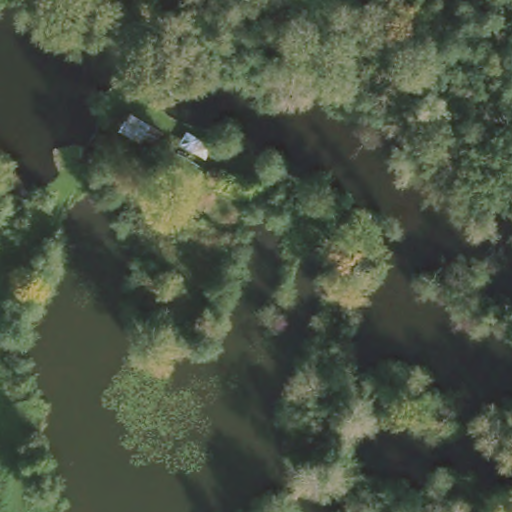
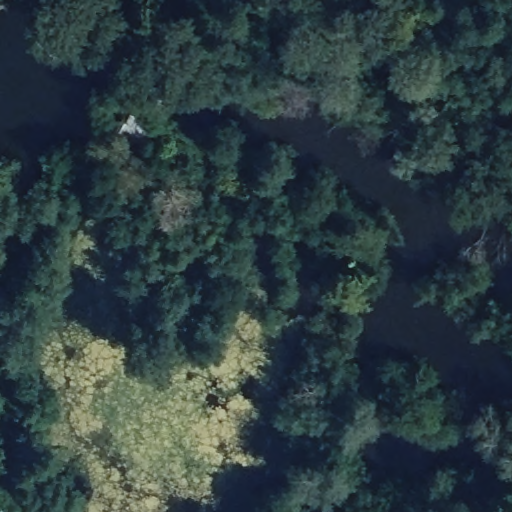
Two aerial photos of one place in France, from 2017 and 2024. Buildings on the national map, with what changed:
unchanged [(130,109),(160,126),(147,144),(118,128),(130,109)]

